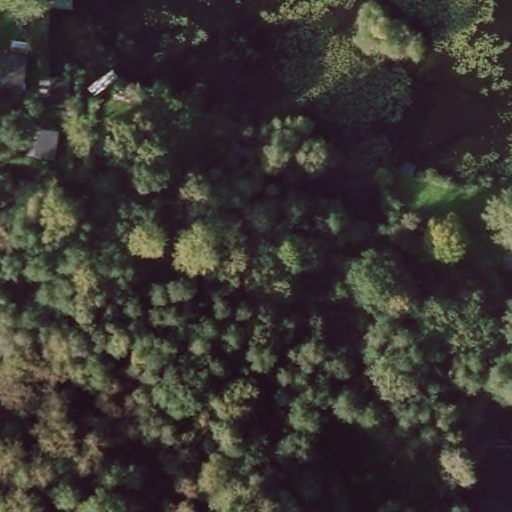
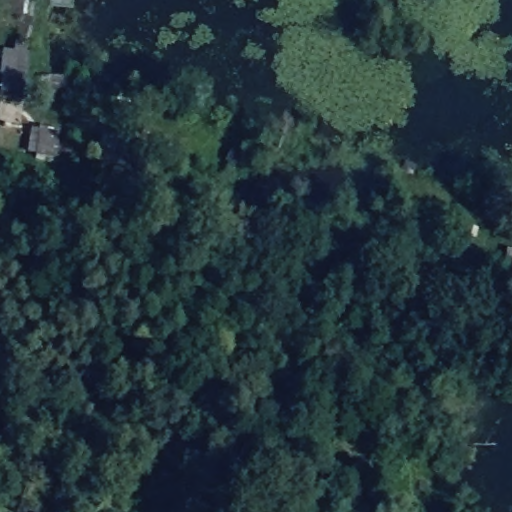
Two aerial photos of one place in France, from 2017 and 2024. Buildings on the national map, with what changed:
unchanged [(137,172),(97,169),(99,141),(140,145),(137,172)]
unchanged [(512,243),(512,259),(495,255),(500,240),(512,243)]

